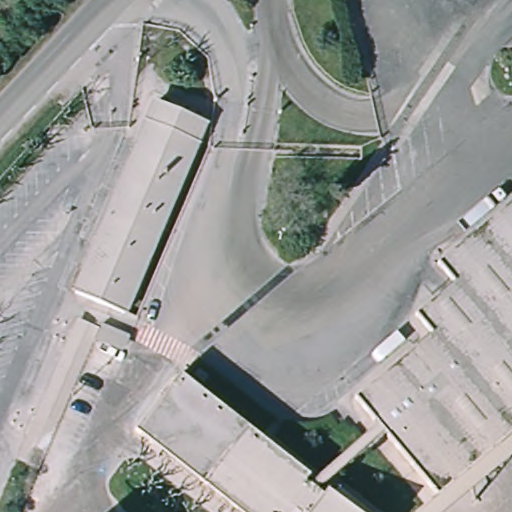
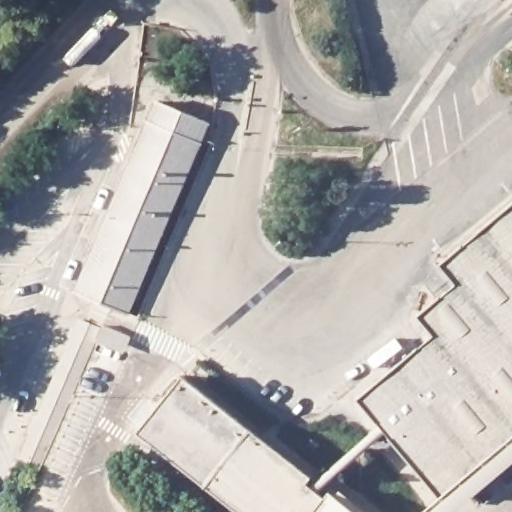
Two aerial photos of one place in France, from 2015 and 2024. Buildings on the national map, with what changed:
unchanged [(207,122),(125,315),(75,293),(155,101),(207,122)]
unchanged [(361,396),(437,331),(421,312),(459,280),(443,260),(512,202),(512,435),(443,493),(361,396)]
unchanged [(19,460),(79,320),(102,330),(104,326),(132,338),(125,355),(97,342),(40,468),(19,460)]
unchanged [(305,484),(324,498),(328,492),(353,512),(235,512),(135,433),(180,377),(310,477),(305,484)]

